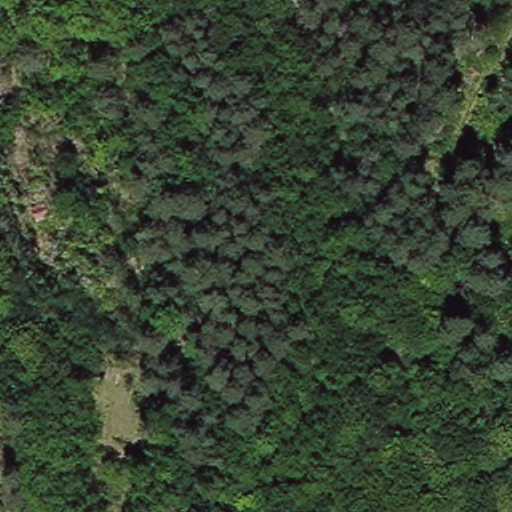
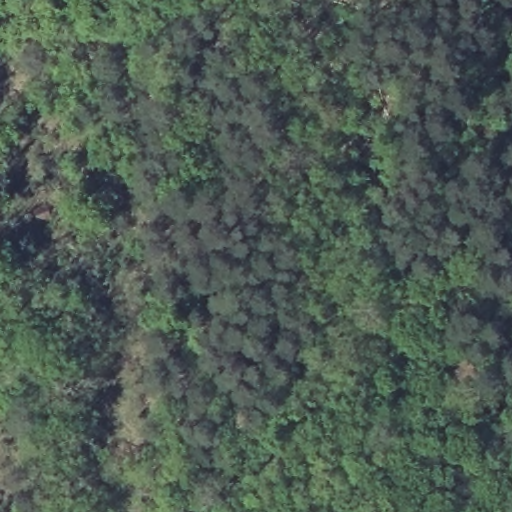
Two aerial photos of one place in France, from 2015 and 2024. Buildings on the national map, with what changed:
unchanged [(12,195),(10,180),(25,177),(26,193),(12,195)]

